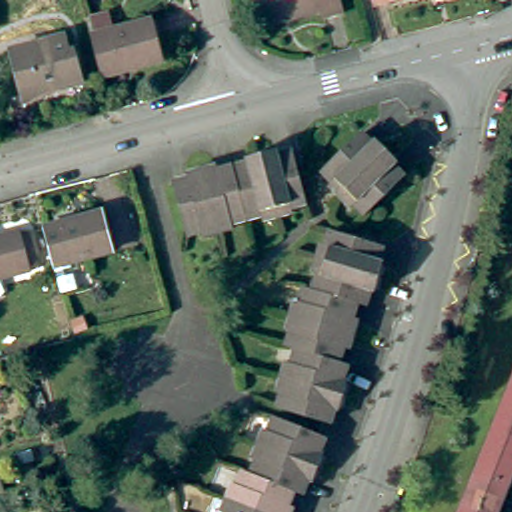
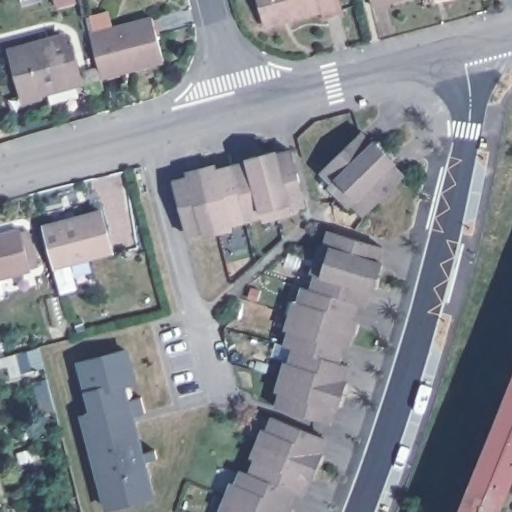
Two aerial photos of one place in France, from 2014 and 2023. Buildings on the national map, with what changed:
unchanged [(267,17),(262,0),(342,0),(346,12),(326,18),(324,11),(296,19),(269,25),(267,17)]
unchanged [(374,0),(388,0),(375,4),(374,0)]
unchanged [(104,70),(93,33),(155,15),(168,58),(139,66),(105,76),(104,70)]
unchanged [(66,34),(74,60),(78,60),(84,82),(43,94),(41,89),(24,94),(13,48),(66,34)]
unchanged [(332,183),(337,177),(327,166),(363,134),(405,176),(371,210),(359,199),(353,205),(332,183)]
unchanged [(206,236),(203,227),(189,230),(176,181),(294,151),(307,199),(292,203),(294,213),(264,220),(262,211),(233,219),(235,229),(206,236)]
unchanged [(69,294),(62,267),(51,229),(109,213),(119,251),(78,262),(85,290),(69,294)]
unchanged [(0,298),(0,237),(23,230),(23,232),(32,230),(41,266),(32,268),(33,271),(4,280),(7,292),(4,297),(0,298)]
unchanged [(304,368),(308,353),(299,351),(303,336),(296,334),(305,304),(312,306),(316,293),(325,295),(329,281),(320,278),(329,249),(338,251),(342,237),(390,250),(373,310),(364,307),(347,366),(355,368),(337,427),(290,412),(294,399),(285,396),(294,366),(304,368)]
new [(126,385),(131,401),(142,398),(146,413),(134,415),(144,452),(156,450),(158,459),(147,461),(156,498),(106,511),(79,416),(89,413),(84,391),(76,362),(128,347),(137,382),(126,385)]
unchanged [(512,361),(512,462),(492,512),(452,512),(512,361)]
unchanged [(241,486),(249,490),(254,476),(262,480),(268,466),(259,463),(270,433),(279,437),(284,422),(331,441),(310,496),(302,494),(295,512),(230,512),(241,486)]
unchanged [(4,500),(0,501),(0,485),(4,500)]

